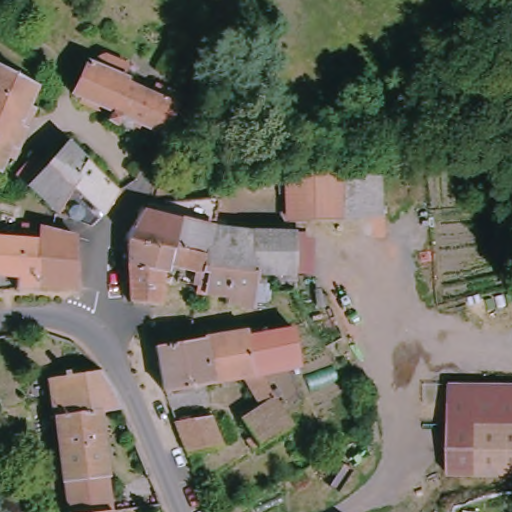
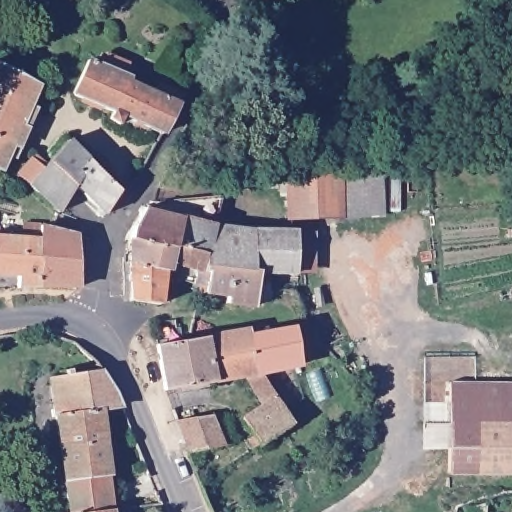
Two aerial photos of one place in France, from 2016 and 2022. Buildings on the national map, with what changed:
unchanged [(114,131),(98,119),(101,112),(65,96),(64,92),(80,61),(87,64),(90,57),(93,59),(93,56),(95,57),(96,55),(118,65),(115,76),(120,79),(119,83),(143,94),(148,85),(174,97),(164,107),(146,145),(114,131)]
unchanged [(44,89),(7,177),(0,174),(0,65),(44,89)]
unchanged [(83,189),(64,212),(35,185),(72,142),(124,192),(111,217),(83,189)]
unchanged [(363,174),(384,171),(389,219),(366,221),(345,222),(293,223),(289,182),(341,176),(363,174)]
unchanged [(132,257),(137,256),(138,243),(136,242),(149,218),(149,214),(156,207),(161,207),(162,202),(231,200),(226,229),(269,234),(299,235),(306,235),(306,277),(276,277),(269,277),(269,272),(216,265),(216,272),(218,272),(216,287),(201,283),(191,282),(191,286),(183,285),(184,276),(180,275),(174,273),(171,306),(158,305),(135,302),(133,273),(132,257)]
unchanged [(45,240),(45,227),(82,236),(83,287),(45,287),(45,240)]
unchanged [(24,276),(0,274),(0,237),(45,240),(45,287),(23,288),(24,276)]
unchanged [(265,308),(238,303),(239,297),(206,293),(201,292),(201,283),(216,287),(218,272),(216,272),(216,265),(269,272),(269,277),(265,308)]
unchanged [(298,330),(304,367),(267,377),(261,378),(253,337),(298,330)]
unchanged [(160,346),(184,342),(192,340),(251,331),(253,337),(261,378),(267,377),(297,426),(289,432),(291,437),(276,446),(273,442),(264,448),(248,420),(268,407),(251,378),(168,390),(160,346)]
unchanged [(103,362),(123,395),(128,406),(104,412),(116,512),(73,512),(55,381),(81,375),(66,357),(79,341),(103,362)]
unchanged [(446,385),(512,385),(512,474),(445,474),(446,385)]
unchanged [(181,422),(216,415),(228,447),(193,454),(181,422)]

